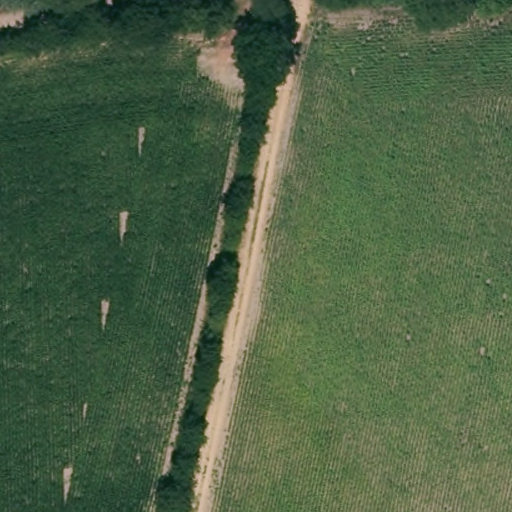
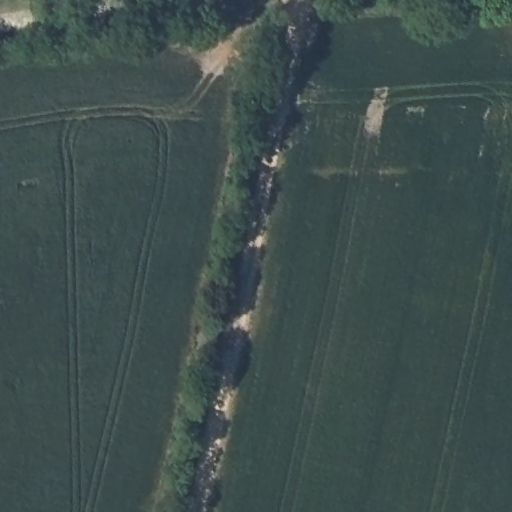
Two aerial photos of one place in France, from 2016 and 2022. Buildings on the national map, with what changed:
[]

